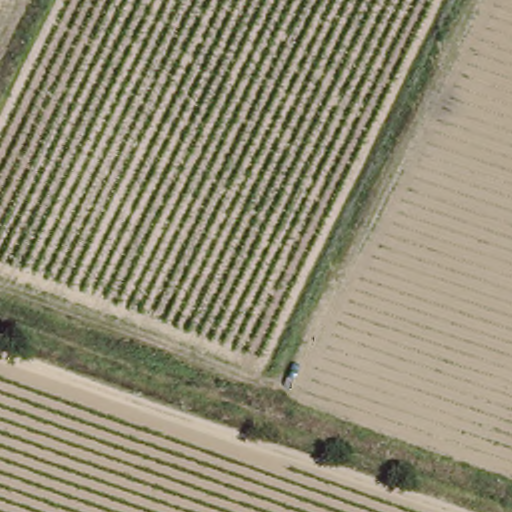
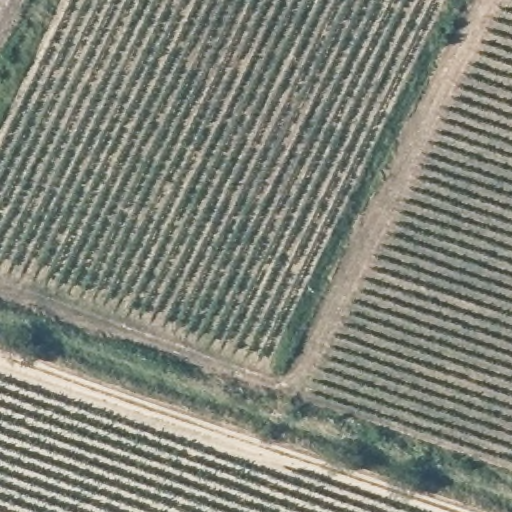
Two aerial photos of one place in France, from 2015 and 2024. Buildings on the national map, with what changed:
[]

